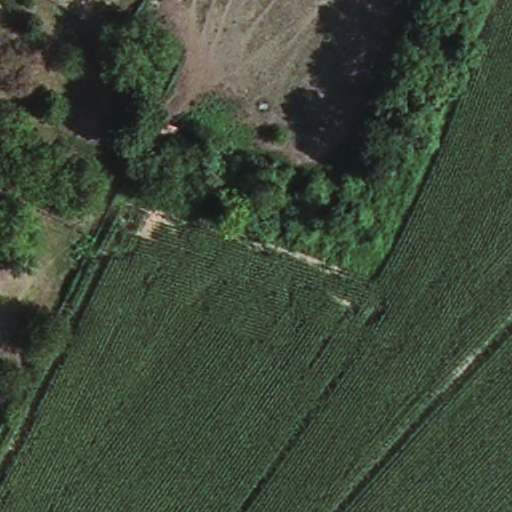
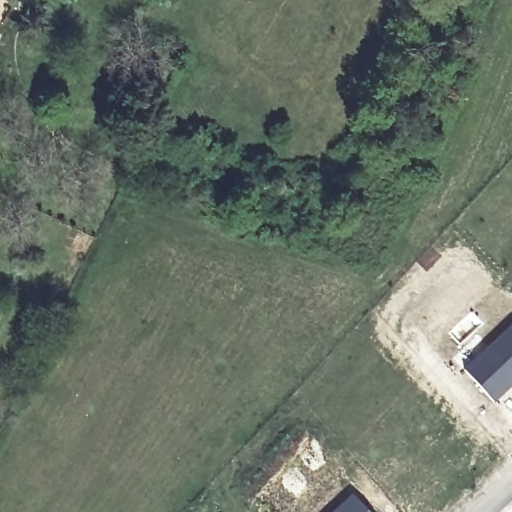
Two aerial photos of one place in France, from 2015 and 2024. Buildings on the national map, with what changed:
unchanged [(173,130),(162,151),(145,142),(156,121),(173,130)]
new [(512,321),(512,385),(495,401),(463,366),(512,321)]
new [(350,492),(370,512),(330,512),(350,492)]

